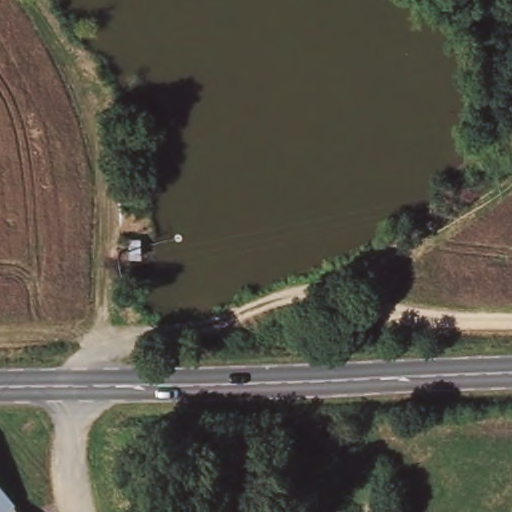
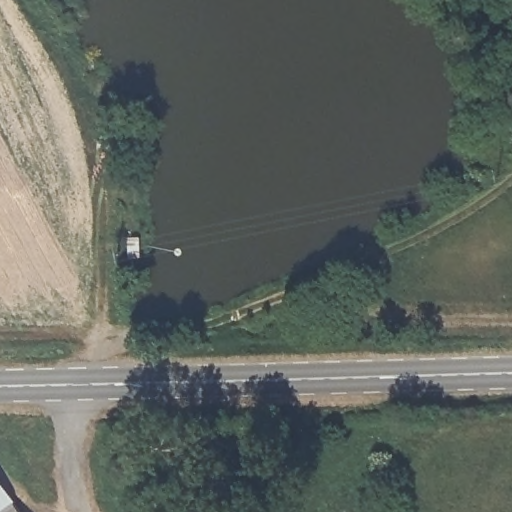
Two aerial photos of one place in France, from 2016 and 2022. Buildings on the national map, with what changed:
unchanged [(61,426),(64,426),(65,426),(64,447),(47,446),(49,426),(61,426)]
unchanged [(19,512),(0,512),(0,485),(19,512)]

